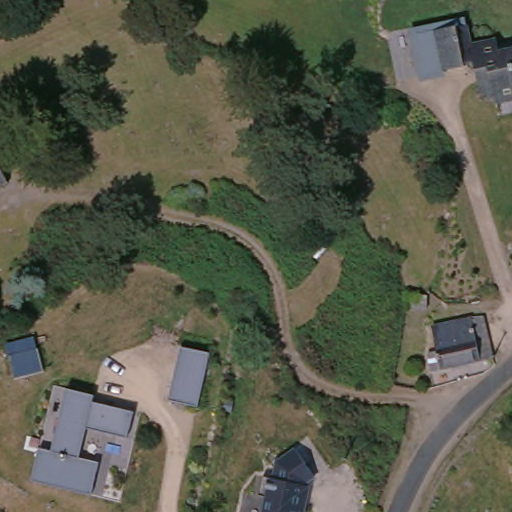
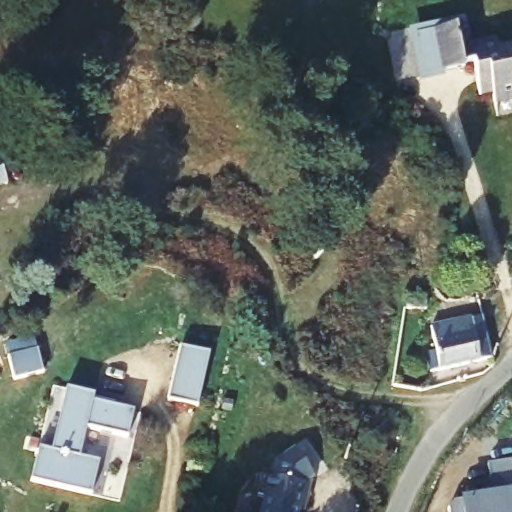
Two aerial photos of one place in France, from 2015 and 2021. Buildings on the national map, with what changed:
unchanged [(469,69),(460,72),(461,75),(428,83),(421,39),(450,35),(456,54),(512,45),(512,107),(492,112),(490,103),(478,104),(469,69)]
unchanged [(0,170),(7,184),(0,188),(0,170)]
unchanged [(425,321),(403,319),(406,304),(425,305),(425,321)]
unchanged [(491,367),(477,371),(477,373),(431,382),(426,361),(436,358),(431,332),(459,326),(460,330),(481,325),(491,367)]
unchanged [(211,355),(198,409),(169,402),(182,348),(211,355)]
unchanged [(0,364),(34,357),(37,381),(3,387),(0,370),(0,364)]
unchanged [(39,447),(52,450),(67,387),(95,394),(94,400),(135,410),(129,437),(87,427),(80,456),(100,461),(92,494),(31,480),(39,447)]
unchanged [(297,451),(315,480),(307,484),(305,489),(303,488),(301,496),(303,496),(300,512),(260,512),(263,498),(257,496),(262,477),(273,480),(278,463),(297,451)]
new [(453,507),(487,502),(486,494),(490,493),(487,470),(512,467),(512,512),(450,512),(453,507)]

